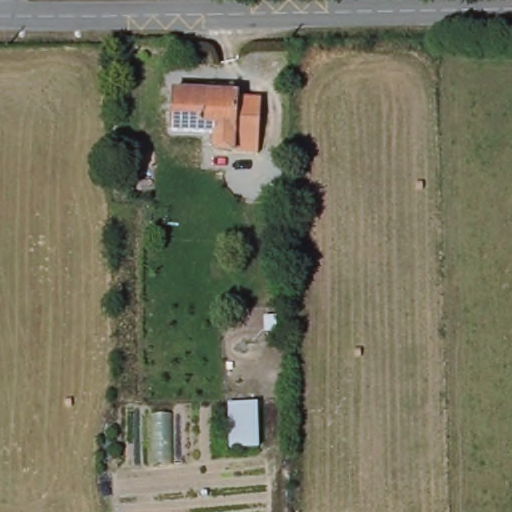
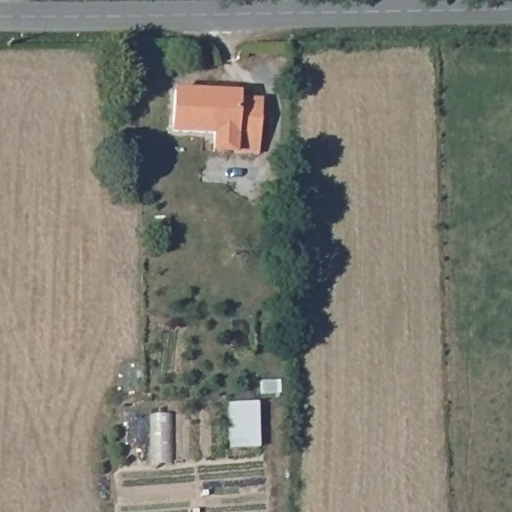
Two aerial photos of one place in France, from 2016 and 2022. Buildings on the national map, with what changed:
unchanged [(174,89),(239,93),(237,135),(174,131),(174,89)]
unchanged [(258,155),(213,152),(213,133),(237,135),(239,93),(262,98),(258,155)]
unchanged [(259,406),(259,447),(231,447),(230,406),(259,406)]

